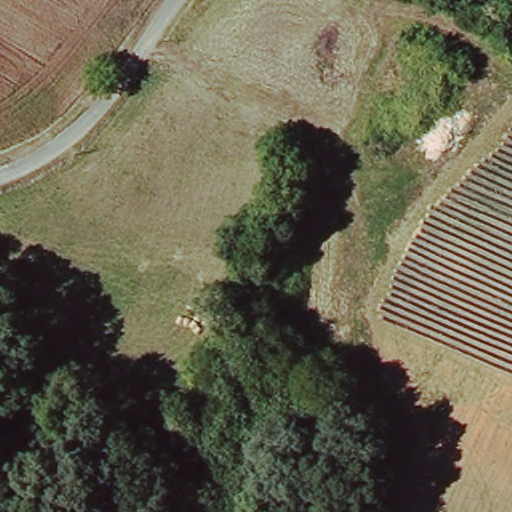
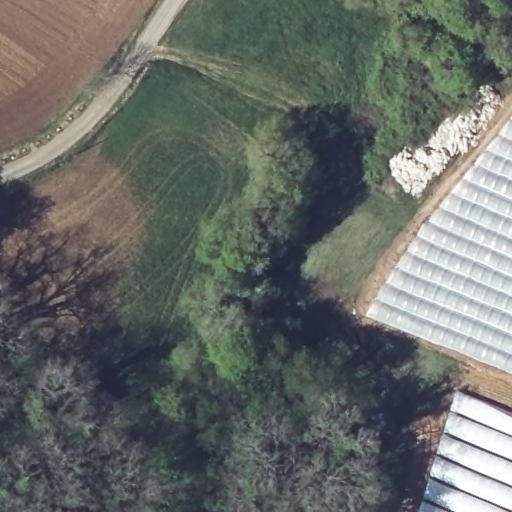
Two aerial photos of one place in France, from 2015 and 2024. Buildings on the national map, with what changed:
demolished [(392,376),(371,312),(425,193),(512,153),(512,432),(392,376)]
new [(444,427),(458,389),(512,413),(512,512),(417,512),(444,427)]

